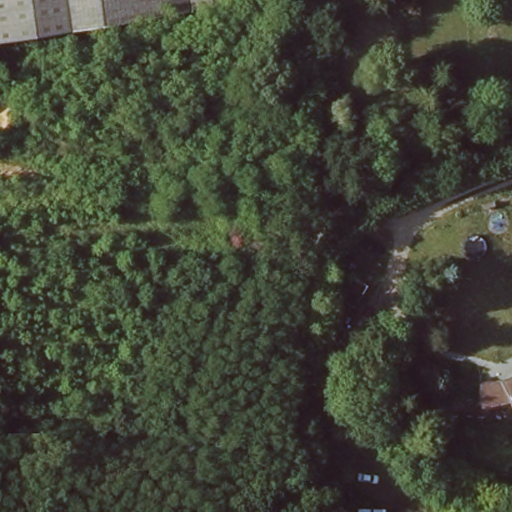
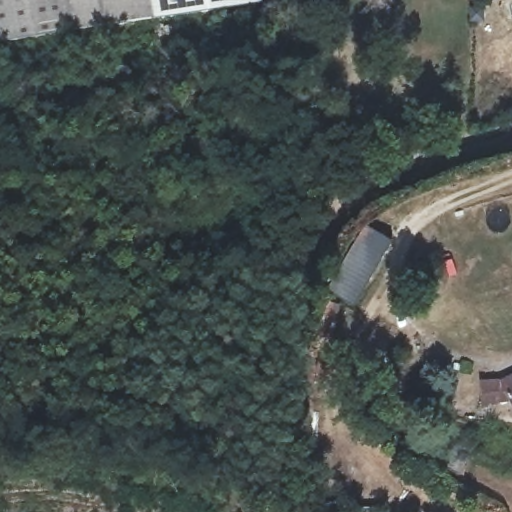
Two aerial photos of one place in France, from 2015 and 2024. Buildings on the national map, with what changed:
unchanged [(197,12),(0,45),(0,0),(196,0),(197,12)]
new [(197,12),(196,0),(263,0),(197,12)]
new [(353,307),(326,292),(365,226),(392,242),(353,307)]
unchanged [(512,381),(512,404),(503,385),(512,381)]

